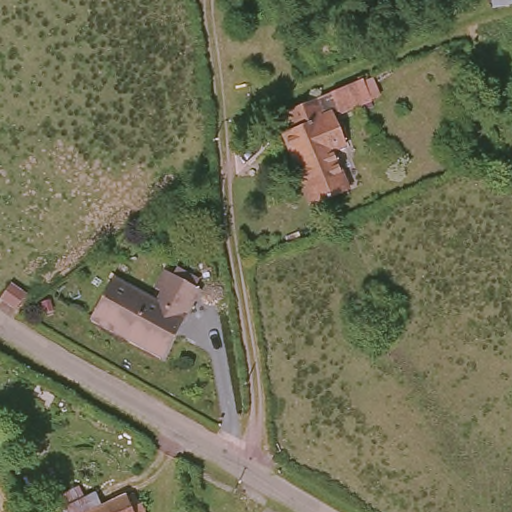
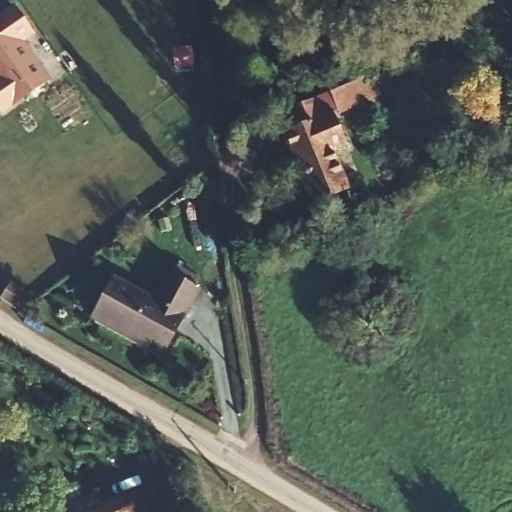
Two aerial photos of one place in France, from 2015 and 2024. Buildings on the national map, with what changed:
new [(0,15),(13,6),(35,35),(25,42),(52,80),(2,115),(0,112),(0,15)]
unchanged [(338,116),(335,118),(346,146),(332,151),(348,192),(312,207),(295,166),(298,164),(293,152),(290,153),(282,134),(294,129),(287,111),(295,108),(302,105),(311,101),(341,89),(348,86),(362,80),(372,77),(382,101),(372,105),(340,118),(338,116)]
unchanged [(130,339),(92,319),(114,280),(155,302),(160,292),(155,289),(164,273),(196,290),(164,352),(162,356),(130,339)]
unchanged [(13,286),(28,297),(17,312),(2,300),(13,286)]
unchanged [(70,490),(75,501),(92,493),(98,507),(127,494),(133,506),(135,505),(139,512),(49,512),(57,509),(52,499),(70,490)]

